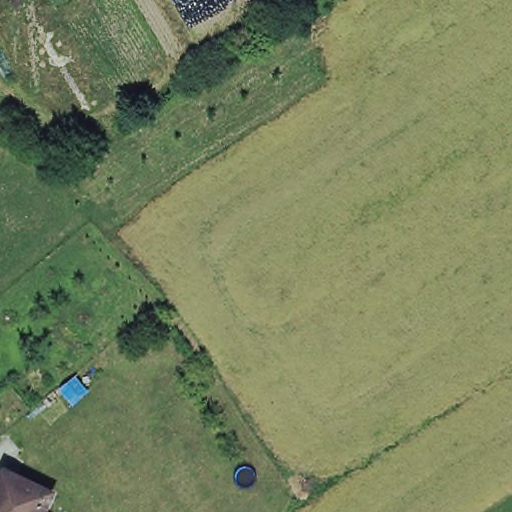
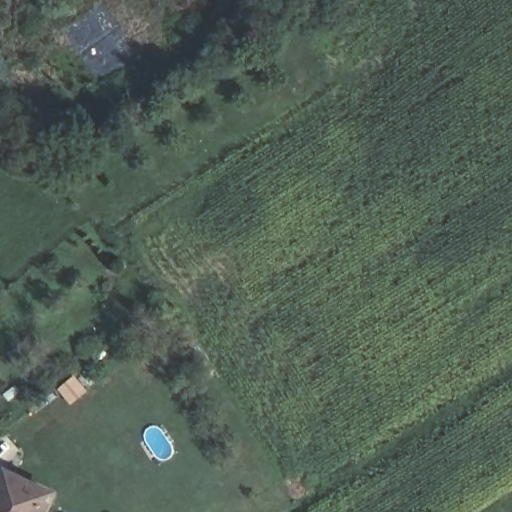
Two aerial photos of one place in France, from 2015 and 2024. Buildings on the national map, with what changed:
unchanged [(55,492),(47,512),(0,512),(0,498),(11,472),(55,492)]

